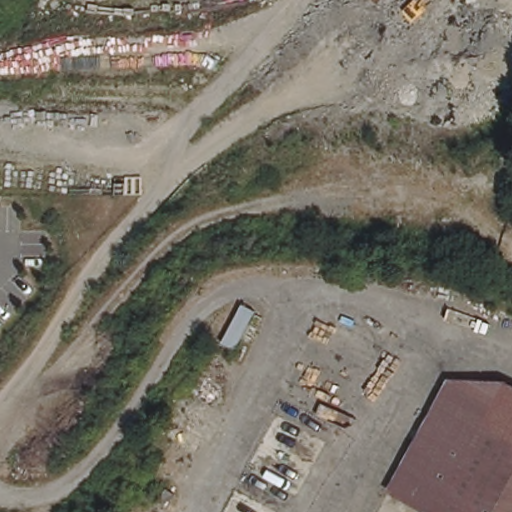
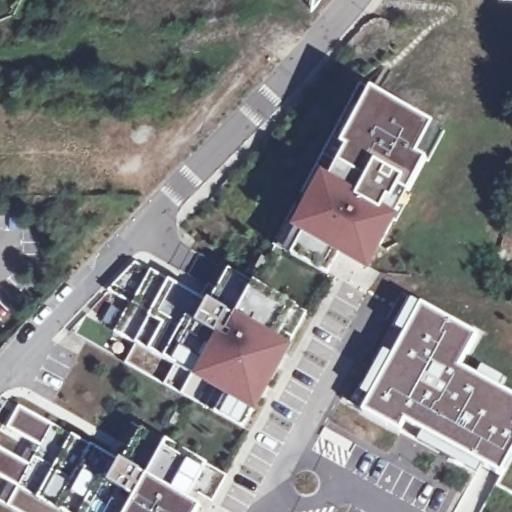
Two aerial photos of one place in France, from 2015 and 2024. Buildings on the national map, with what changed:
new [(312,5),(313,0),(316,0),(312,5)]
new [(505,0),(512,0),(512,1),(505,0)]
new [(297,229),(312,202),(324,180),(332,184),(350,151),(342,146),(371,93),(379,97),(432,126),(441,131),(425,161),(407,195),(393,220),(367,268),(340,253),(327,275),(292,256),(285,252),(297,229)]
new [(277,369),(242,430),(126,364),(136,344),(116,332),(131,304),(110,291),(136,265),(202,300),(210,286),(221,266),(230,271),(296,307),(277,340),(288,347),(277,369)]
new [(383,350),(392,355),(402,335),(393,329),(412,299),(479,335),(461,366),(512,396),(512,460),(500,480),(462,460),(459,466),(416,441),(420,435),(407,428),(402,436),(359,413),(367,399),(358,393),(383,350)]
new [(32,441),(9,428),(20,408),(115,460),(122,446),(134,425),(141,429),(207,465),(187,500),(200,507),(197,512),(64,512),(19,487),(9,506),(0,502),(0,499),(10,481),(0,476),(0,449),(22,461),(32,441)]
demolished [(427,430),(471,454),(459,476),(415,451),(427,430)]

